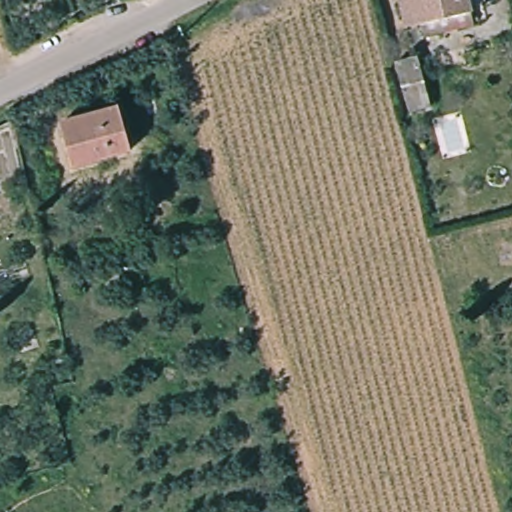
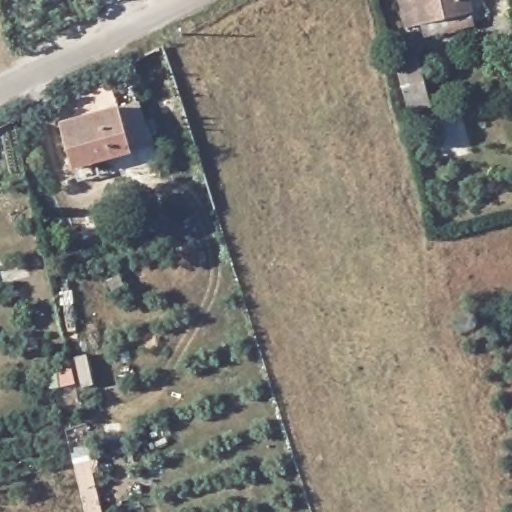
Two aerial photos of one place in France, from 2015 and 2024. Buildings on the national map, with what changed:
unchanged [(472,27),(423,40),(420,24),(405,27),(398,0),(465,0),(472,27)]
unchanged [(510,54),(506,40),(512,38),(512,53),(510,54)]
unchanged [(408,111),(395,60),(416,55),(428,106),(408,111)]
unchanged [(130,151),(74,168),(62,120),(117,105),(130,151)]
new [(86,512),(71,448),(88,444),(104,512),(86,512)]

